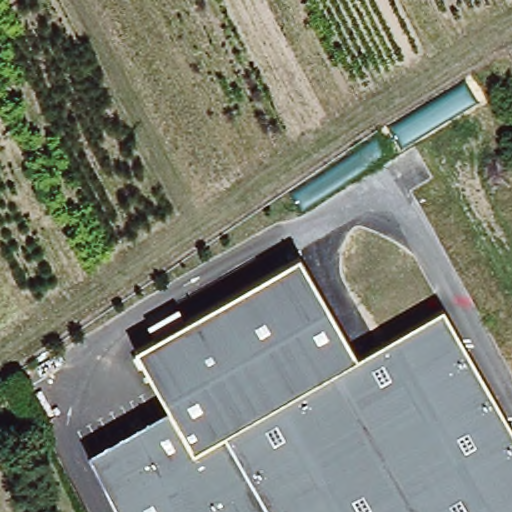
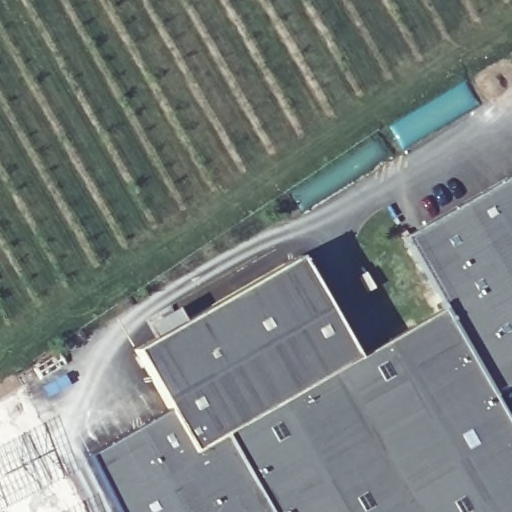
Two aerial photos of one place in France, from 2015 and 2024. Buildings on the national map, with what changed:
new [(400,239),(512,175),(512,381),(487,394),(442,313),(400,239)]
unchanged [(170,408),(137,350),(158,337),(146,322),(174,306),(189,325),(300,258),(353,364),(442,313),(512,438),(512,512),(121,512),(94,458),(170,408)]

